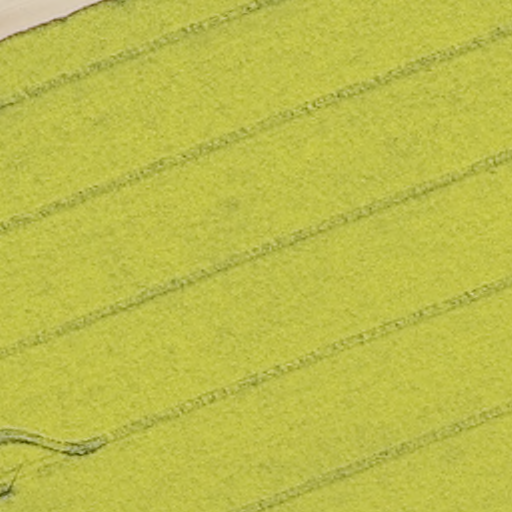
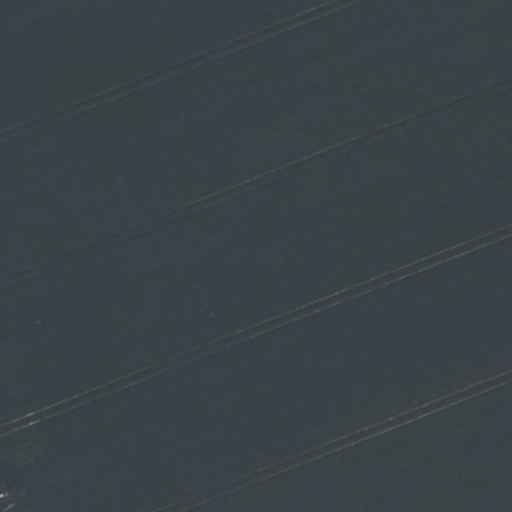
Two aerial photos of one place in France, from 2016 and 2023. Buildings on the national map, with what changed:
[]

